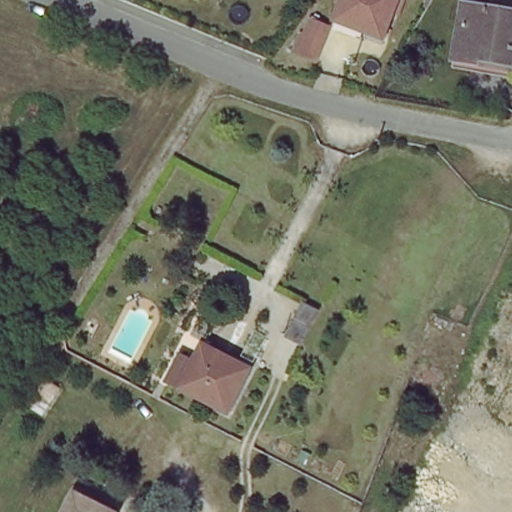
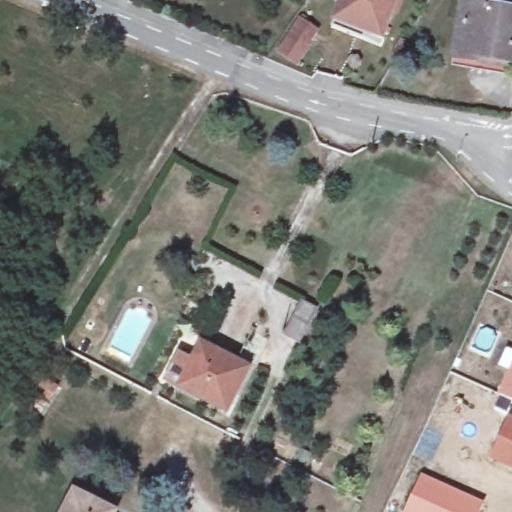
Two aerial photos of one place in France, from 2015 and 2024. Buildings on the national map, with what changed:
unchanged [(380,37),(330,24),(339,0),(394,0),(380,37)]
unchanged [(454,62),(469,0),(471,0),(512,10),(512,52),(509,62),(507,72),(475,67),(454,62)]
unchanged [(318,306),(301,340),(287,333),(304,298),(318,306)]
unchanged [(222,415),(173,390),(196,346),(243,369),(222,415)]
new [(496,366),(505,346),(512,349),(512,401),(495,394),(506,370),(496,366)]
new [(512,415),(512,470),(485,458),(506,413),(512,415)]
new [(483,501),(478,512),(402,512),(420,472),(483,501)]
unchanged [(63,512),(73,492),(111,510),(110,512),(63,512)]

